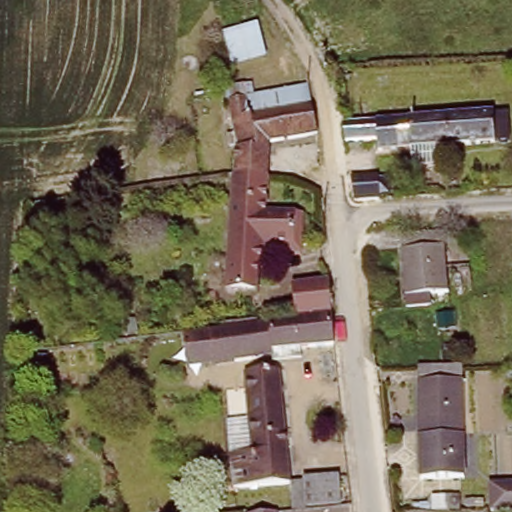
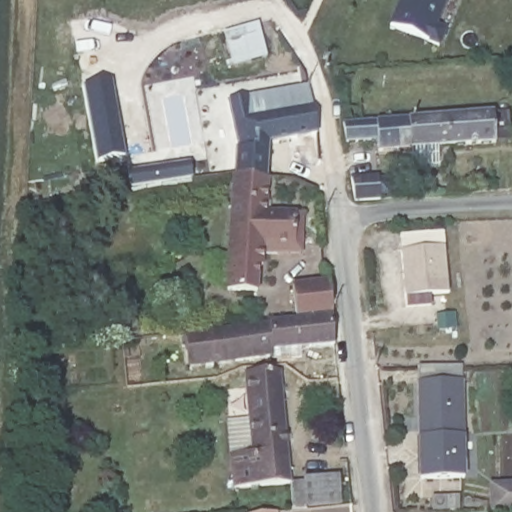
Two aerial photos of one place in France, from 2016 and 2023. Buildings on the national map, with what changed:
new [(447,0),(437,26),(447,29),(440,47),(388,26),(399,0),(447,0)]
unchanged [(233,69),(222,33),(259,24),(269,56),(233,69)]
unchanged [(230,95),(305,82),(310,103),(270,109),(274,137),(270,139),(267,172),(233,168),(236,136),(230,95)]
unchanged [(274,137),(270,109),(310,103),(315,131),(292,135),(274,137)]
unchanged [(382,144),(381,136),(350,137),(345,116),(497,107),(499,138),(382,144)]
unchanged [(275,249),(262,249),(262,262),(255,262),(255,282),(225,282),(233,168),(267,172),(263,208),(292,209),(301,209),(301,224),(301,241),(301,249),(275,249)]
unchanged [(382,190),(357,191),(355,169),(382,169),(382,190)]
unchanged [(451,284),(433,286),(435,298),(410,301),(403,235),(446,231),(451,284)]
unchanged [(327,288),(330,316),(294,318),(292,292),(327,288)]
unchanged [(302,352),(302,362),(271,365),(270,360),(268,328),(330,324),(333,350),(302,352)]
unchanged [(184,335),(210,333),(268,328),(270,360),(212,365),(186,367),(184,335)]
unchanged [(418,477),(416,366),(460,365),(462,477),(418,477)]
unchanged [(237,477),(235,445),(242,445),(236,369),(283,366),(291,473),(237,477)]
unchanged [(307,506),(305,479),(340,477),(342,503),(307,506)]
unchanged [(512,485),(512,512),(489,512),(488,486),(512,485)]

